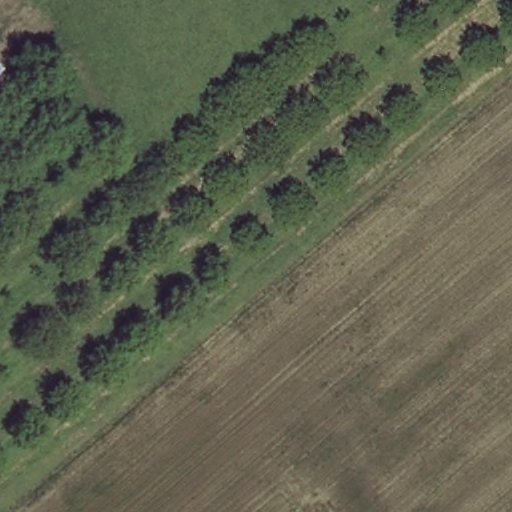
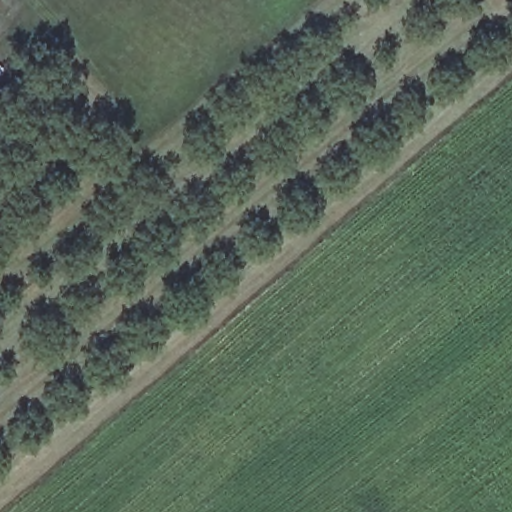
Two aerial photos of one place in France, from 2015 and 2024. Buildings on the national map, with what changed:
[]

